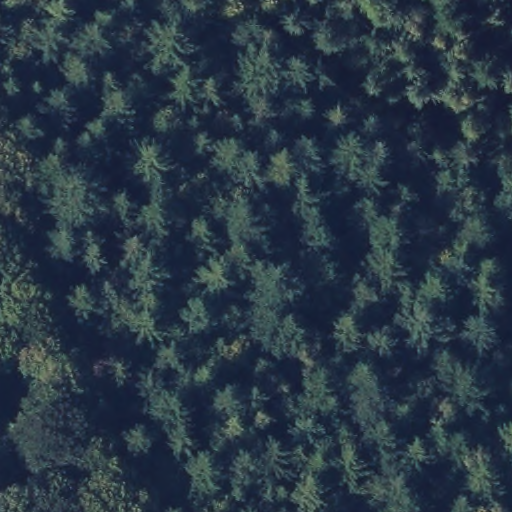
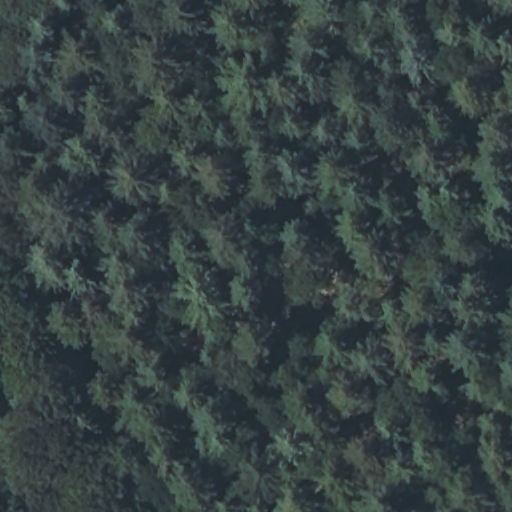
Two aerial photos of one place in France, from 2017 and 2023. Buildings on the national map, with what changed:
[]

